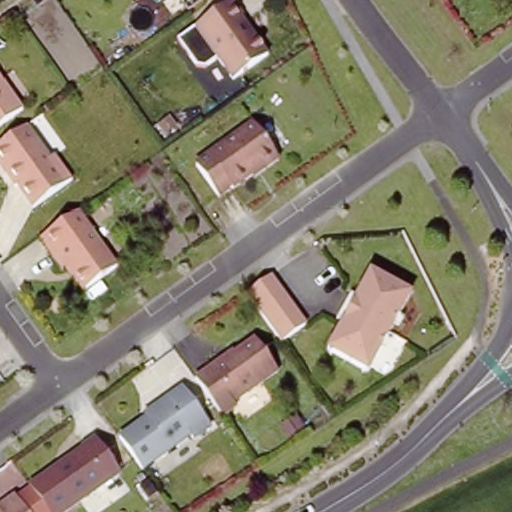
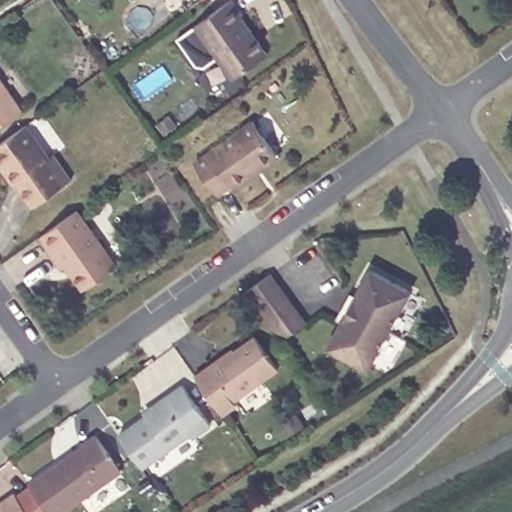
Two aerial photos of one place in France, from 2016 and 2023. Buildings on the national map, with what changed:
unchanged [(228,0),(246,27),(264,54),(246,67),(231,79),(191,27),(228,0)]
unchanged [(0,121),(0,80),(19,107),(0,121)]
unchanged [(48,152),(53,150),(70,173),(32,201),(16,180),(14,181),(3,165),(5,164),(0,157),(0,137),(24,120),(48,152)]
unchanged [(213,157),(214,153),(257,122),(280,155),(256,171),(258,174),(238,187),(235,186),(223,194),(201,165),(213,157)]
unchanged [(80,205),(120,261),(86,287),(68,261),(64,264),(43,232),(80,205)]
unchanged [(409,288),(366,364),(328,343),(346,309),(352,300),(371,266),(409,288)]
unchanged [(309,321),(284,340),(248,290),(273,272),(309,321)]
unchanged [(211,367),(213,368),(257,337),(281,369),(236,401),(239,406),(226,415),(198,376),(211,367)]
unchanged [(120,435),(153,411),(152,408),(185,386),(213,424),(194,438),(191,434),(144,467),(120,435)]
unchanged [(84,446),(83,443),(95,434),(121,471),(62,512),(50,512),(30,484),(84,446)]
unchanged [(5,497),(17,488),(34,512),(0,512),(0,504),(7,500),(5,497)]

